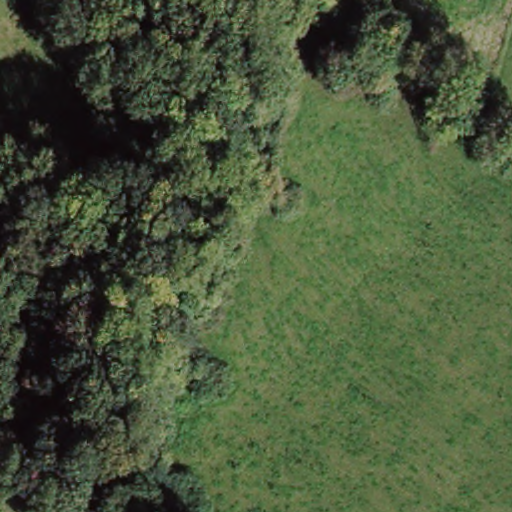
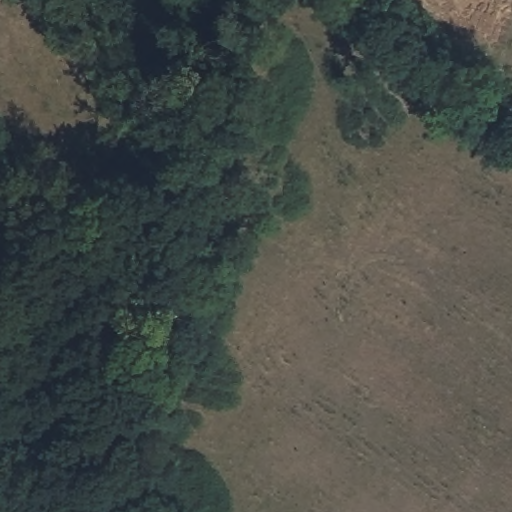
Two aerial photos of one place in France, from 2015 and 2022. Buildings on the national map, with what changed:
[]

